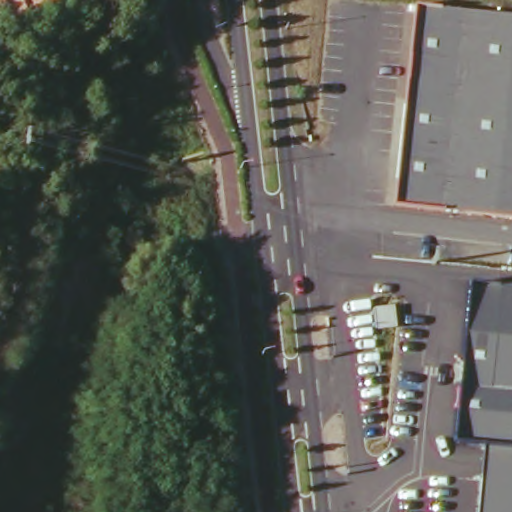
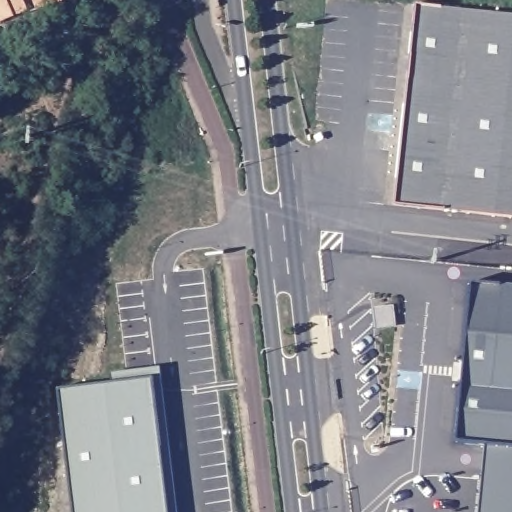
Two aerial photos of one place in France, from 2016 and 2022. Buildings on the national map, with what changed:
unchanged [(512,16),(512,218),(389,205),(410,5),(512,16)]
unchanged [(1,23),(0,23),(0,20),(1,23)]
unchanged [(494,288),(512,290),(512,393),(485,390),(494,288)]
new [(169,512),(73,512),(59,391),(153,380),(169,512)]
unchanged [(480,443),(511,445),(512,426),(512,477),(477,474),(480,443)]
unchanged [(512,477),(512,512),(474,512),(477,474),(512,477)]

